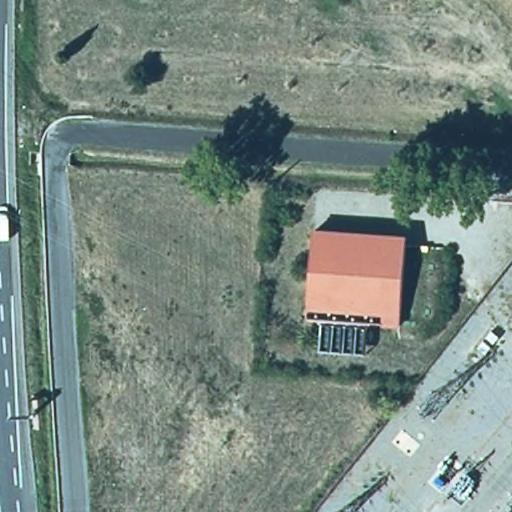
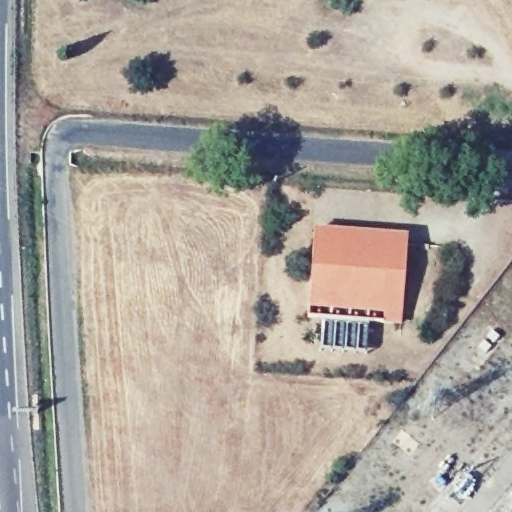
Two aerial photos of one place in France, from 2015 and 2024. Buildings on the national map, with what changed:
unchanged [(392,231),(392,239),(408,241),(402,321),(307,313),(313,227),(392,231)]

